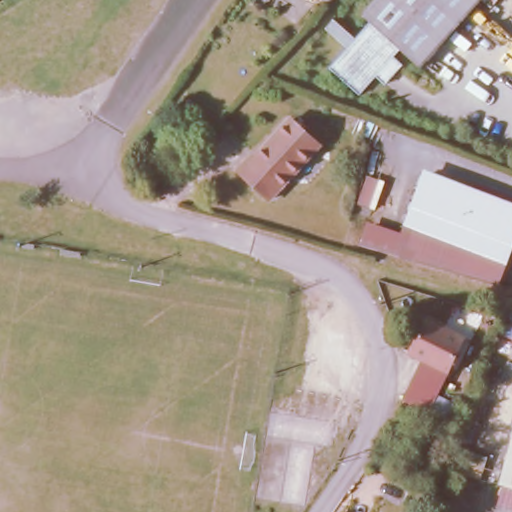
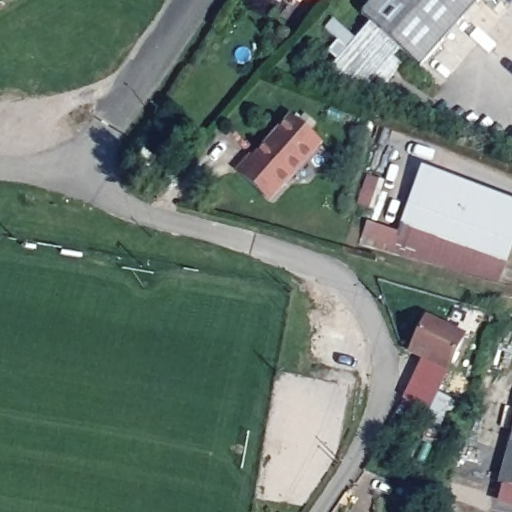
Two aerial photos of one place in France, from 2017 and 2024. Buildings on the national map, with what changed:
unchanged [(426,66),(405,48),(398,56),(407,64),(391,83),(381,75),(365,95),(336,67),(375,22),(366,13),(378,0),(484,0),(426,66)]
unchanged [(313,144),(262,198),(230,169),(245,154),(248,157),(286,117),(313,144)]
unchanged [(512,242),(505,260),(410,224),(430,172),(512,204),(512,242)]
unchanged [(459,337),(423,408),(398,395),(407,378),(410,380),(420,359),(405,352),(421,318),(459,337)]
unchanged [(512,433),(512,486),(498,482),(512,433)]

